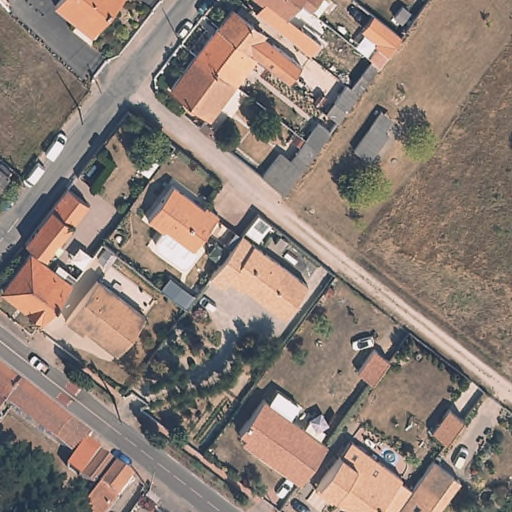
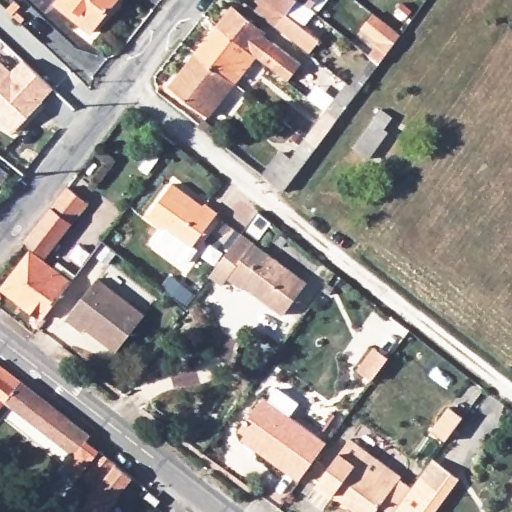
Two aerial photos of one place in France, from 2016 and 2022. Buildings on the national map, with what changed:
unchanged [(61,0),(117,0),(87,37),(53,10),(61,0)]
unchanged [(284,17),(283,19),(260,0),(323,0),(326,3),(316,16),(308,10),(295,25),(284,17)]
unchanged [(392,17),(402,4),(408,8),(398,21),(392,17)]
unchanged [(256,58),(237,43),(218,28),(234,8),(266,34),(263,37),(300,66),(287,83),(256,58)]
unchanged [(197,55),(218,28),(237,43),(256,58),(235,85),(197,55)]
unchanged [(334,101),(346,85),(350,87),(371,59),(368,57),(387,33),(391,36),(394,32),(400,36),(379,65),(358,94),(346,110),(334,101)]
unchanged [(207,120),(169,90),(197,55),(235,85),(207,120)]
new [(10,72),(22,59),(53,89),(14,134),(0,121),(0,115),(1,113),(0,112),(0,63),(10,72)]
unchanged [(387,134),(369,162),(354,151),(377,119),(381,113),(390,119),(386,125),(383,131),(387,134)]
unchanged [(295,155),(294,153),(304,140),(317,122),(330,132),(317,150),(292,183),(282,195),(259,177),(282,149),(293,157),(295,155)]
unchanged [(12,173),(0,189),(0,164),(12,173)]
unchanged [(190,255),(184,256),(160,237),(159,231),(166,221),(150,208),(174,175),(207,200),(209,196),(221,205),(197,239),(200,242),(190,255)]
unchanged [(19,244),(48,208),(64,187),(84,202),(40,260),(19,244)]
unchanged [(225,270),(248,239),(314,290),(290,322),(250,291),(247,294),(234,284),(229,291),(216,281),(225,270)]
unchanged [(27,256),(47,272),(53,264),(73,279),(67,287),(64,292),(40,324),(0,293),(27,256)]
unchanged [(98,268),(146,305),(117,343),(99,330),(101,328),(89,318),(84,324),(67,310),(98,268)]
unchanged [(182,308),(160,290),(169,279),(191,296),(182,308)]
unchanged [(354,378),(371,356),(384,367),(369,388),(368,389),(354,378)]
unchanged [(21,387),(7,405),(0,399),(0,370),(21,387)]
unchanged [(82,483),(65,470),(75,458),(12,409),(7,405),(21,387),(89,439),(85,446),(101,458),(117,471),(134,484),(112,512),(85,512),(98,495),(82,483)]
unchanged [(243,440),(238,436),(261,405),(323,451),(308,471),(295,489),(254,457),(239,445),(243,440)]
unchanged [(434,433),(452,411),(466,421),(461,428),(448,445),(434,433)]
unchanged [(385,512),(380,508),(377,512),(363,512),(335,492),(332,497),(316,484),(352,437),(404,475),(399,482),(411,490),(395,512),(385,512)]
unchanged [(432,461),(459,481),(436,512),(395,512),(411,490),(432,461)]
unchanged [(512,512),(509,512),(512,508),(512,512)]

